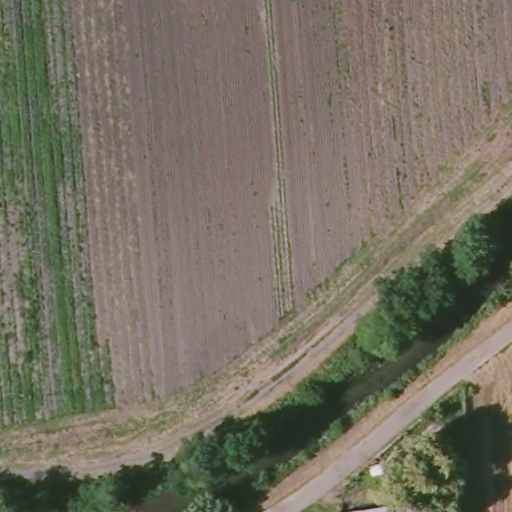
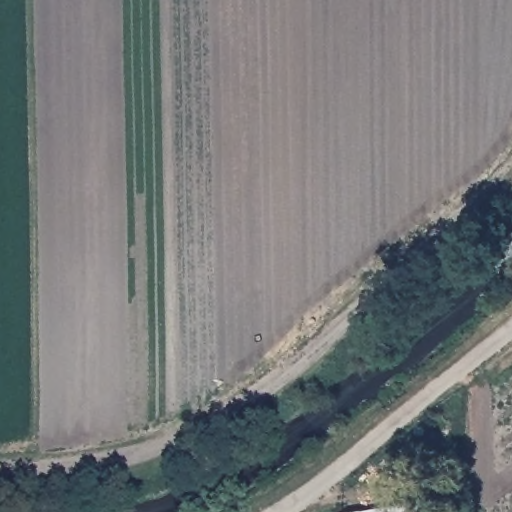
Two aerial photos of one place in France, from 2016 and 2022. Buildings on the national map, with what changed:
unchanged [(447,499),(450,512),(373,512),(447,499)]

